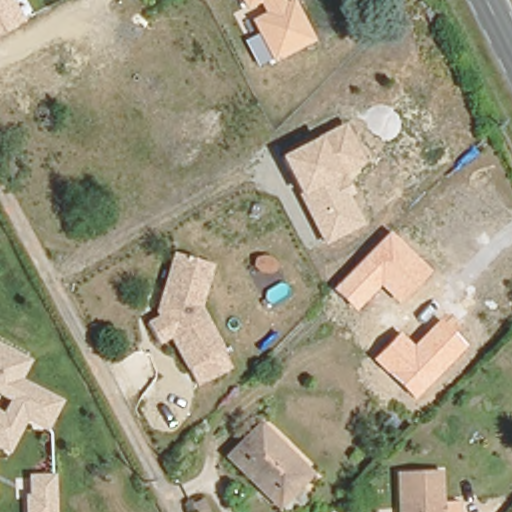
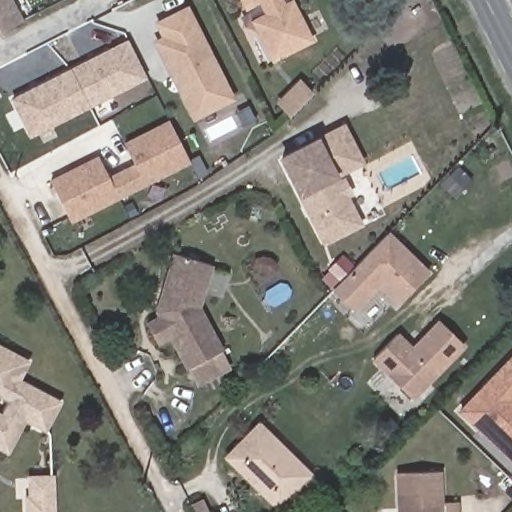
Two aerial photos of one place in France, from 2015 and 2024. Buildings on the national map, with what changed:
unchanged [(22,21),(0,34),(0,0),(11,0),(22,21)]
new [(285,1),(289,0),(294,0),(314,40),(271,62),(250,20),(264,13),(259,2),(245,9),(240,0),(284,0),(285,1)]
new [(158,39),(167,35),(159,20),(188,5),(234,94),(196,114),(182,87),(172,65),(158,39)]
new [(9,101),(126,39),(146,78),(29,137),(9,101)]
new [(71,224),(48,179),(97,155),(107,175),(121,170),(134,164),(123,142),(167,119),(190,163),(71,224)]
unchanged [(323,244),(282,159),(347,125),(356,144),(347,151),(354,165),(337,177),(361,224),(323,244)]
unchanged [(397,304),(379,285),(352,311),(331,288),(389,231),(429,270),(397,304)]
unchanged [(197,390),(168,341),(156,349),(142,324),(152,320),(169,252),(214,267),(202,308),(226,355),(216,361),(223,376),(197,390)]
unchanged [(413,400),(371,360),(397,329),(412,345),(438,319),(467,347),(413,400)]
unchanged [(44,434),(27,423),(10,456),(0,451),(0,346),(31,360),(22,379),(63,401),(44,434)]
new [(512,352),(512,465),(456,411),(512,352)]
unchanged [(265,429),(305,468),(307,470),(274,503),(226,455),(260,423),(265,429)]
unchanged [(444,512),(393,512),(392,468),(441,466),(444,512)]
unchanged [(23,512),(22,496),(28,497),(27,475),(54,475),(57,512),(23,512)]

